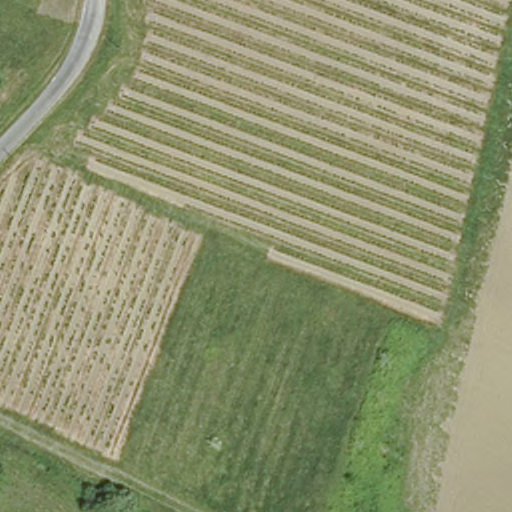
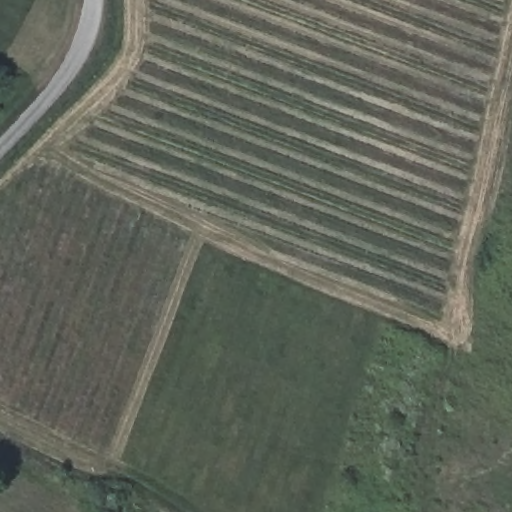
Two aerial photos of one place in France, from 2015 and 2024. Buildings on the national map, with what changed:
[]

